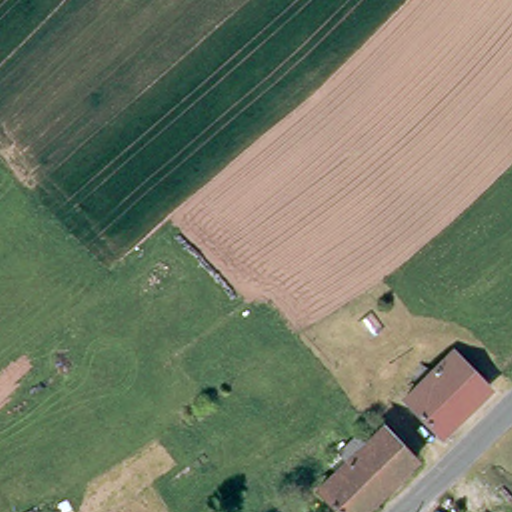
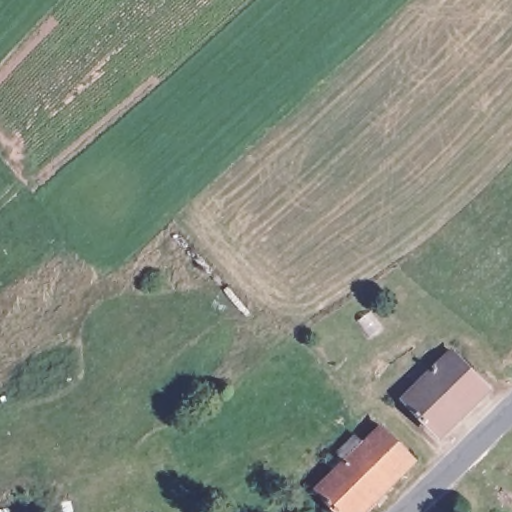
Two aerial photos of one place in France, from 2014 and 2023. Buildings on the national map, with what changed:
unchanged [(452,352),(485,386),(437,434),(402,399),(452,352)]
unchanged [(372,507),(367,502),(357,512),(346,512),(319,483),(370,433),(383,421),(417,452),(404,466),(375,493),(380,498),(372,507)]

